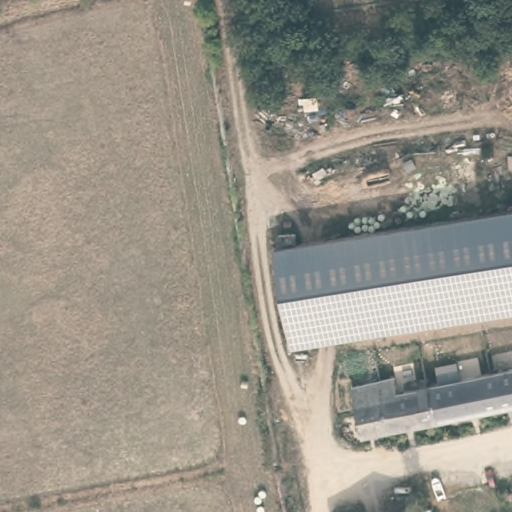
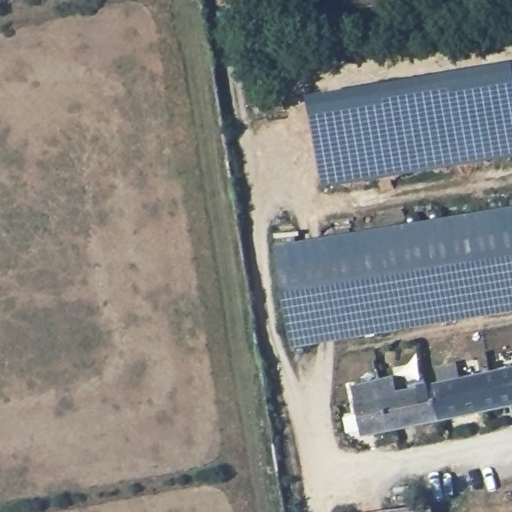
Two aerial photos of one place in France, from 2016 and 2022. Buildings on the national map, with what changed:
new [(512,79),(512,161),(321,191),(307,102),(510,69),(512,79)]
unchanged [(274,248),(512,210),(512,315),(290,352),(274,248)]
unchanged [(352,387),(394,377),(398,393),(512,371),(512,407),(362,437),(352,387)]
unchanged [(433,512),(401,512),(432,508),(433,512)]

